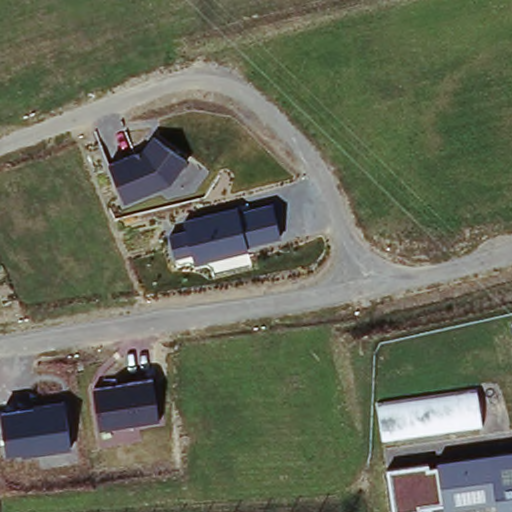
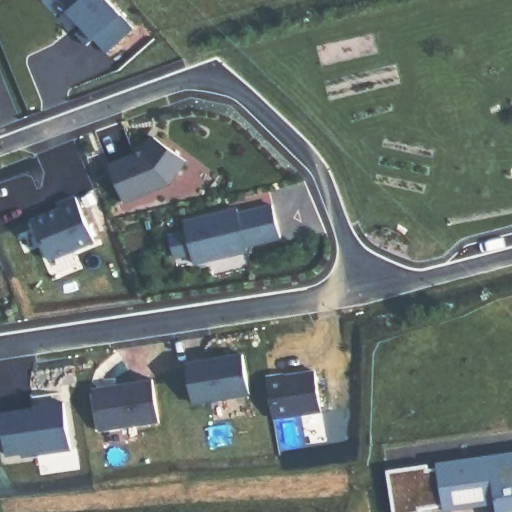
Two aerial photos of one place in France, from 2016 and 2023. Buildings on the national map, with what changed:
new [(116,65),(105,50),(97,56),(88,45),(94,41),(80,24),(83,21),(70,6),(77,0),(110,0),(145,41),(116,65)]
unchanged [(187,159),(170,185),(122,203),(106,162),(144,148),(152,133),(187,159)]
unchanged [(239,210),(274,201),(281,237),(249,244),(250,250),(195,264),(191,253),(174,258),(165,231),(185,227),(182,219),(237,203),(239,210)]
new [(67,221),(65,215),(82,210),(102,252),(57,271),(41,229),(67,221)]
new [(187,361),(244,351),(250,394),(194,403),(187,361)]
new [(265,381),(316,373),(322,417),(272,423),(265,381)]
unchanged [(160,421),(98,431),(91,388),(153,379),(160,421)]
unchanged [(33,406),(32,402),(64,398),(71,449),(21,457),(20,452),(7,453),(0,409),(33,406)]
unchanged [(496,504),(445,511),(443,505),(421,508),(421,512),(394,512),(386,469),(429,462),(430,467),(437,465),(437,462),(512,451),(512,512),(498,512),(496,504)]

